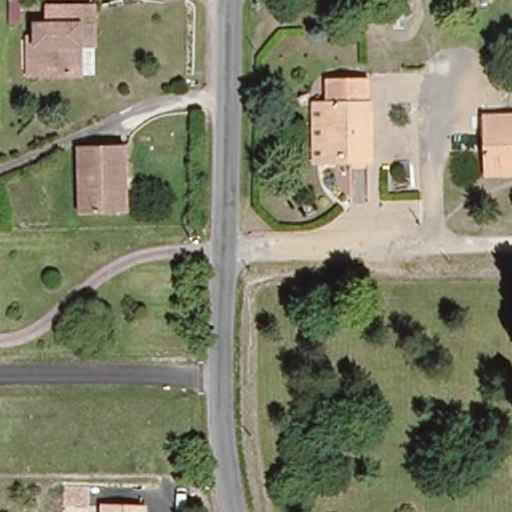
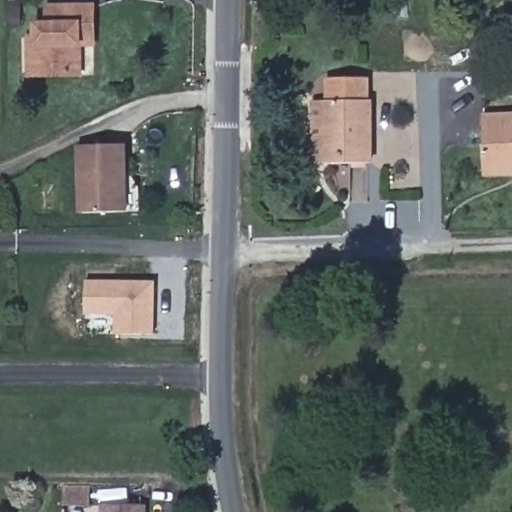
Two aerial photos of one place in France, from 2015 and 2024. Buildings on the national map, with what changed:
unchanged [(23,37),(32,37),(31,22),(44,22),(44,5),(92,5),(92,32),(93,46),(78,46),(79,72),(52,72),(23,73),(23,37)]
unchanged [(311,109),(320,109),(320,85),(361,86),(360,108),(365,108),(365,170),(320,170),(310,170),(311,109)]
unchanged [(481,115),(491,116),(512,116),(512,177),(493,178),(483,178),(483,166),(481,115)]
unchanged [(113,211),(73,213),(70,145),(119,144),(121,179),(122,211),(113,211)]
new [(156,335),(115,333),(116,315),(84,315),(86,280),(157,281),(156,335)]
unchanged [(105,507),(147,507),(147,512),(105,512),(105,507)]

